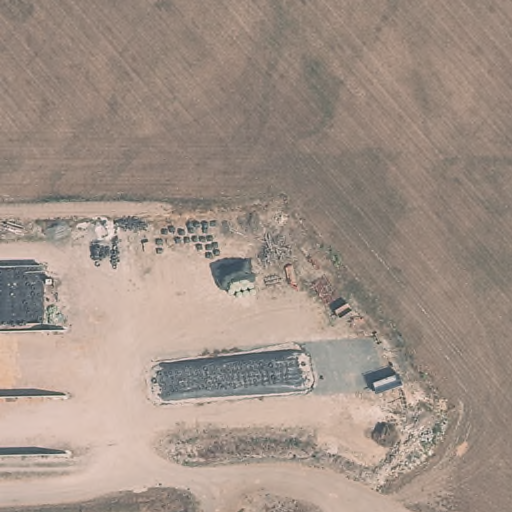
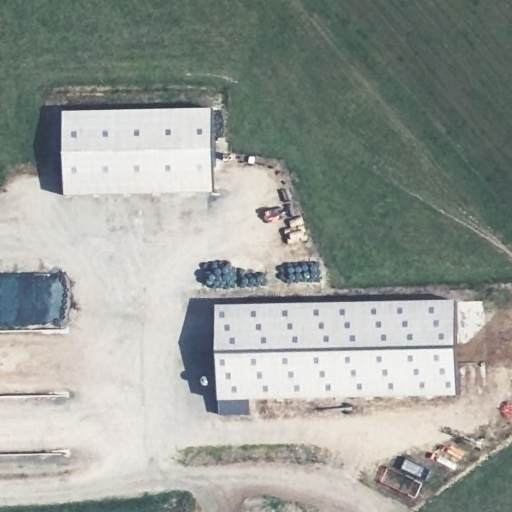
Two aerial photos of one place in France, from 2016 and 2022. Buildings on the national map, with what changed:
new [(64,111),(212,109),(214,193),(64,196),(64,111)]
new [(456,301),(457,396),(246,399),(247,413),(219,415),(219,399),(216,305),(456,301)]

